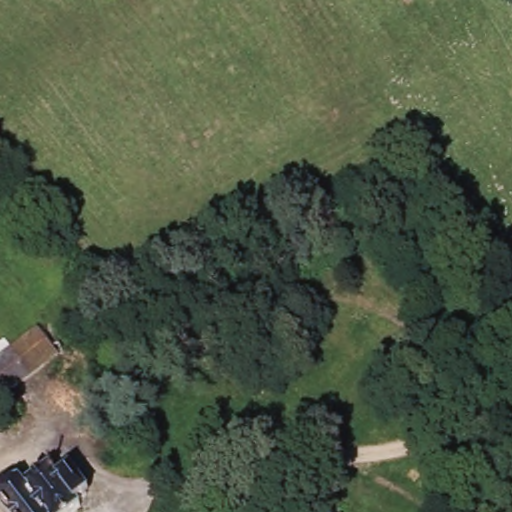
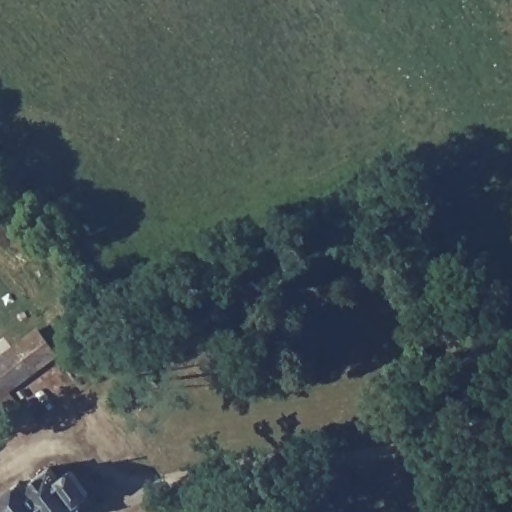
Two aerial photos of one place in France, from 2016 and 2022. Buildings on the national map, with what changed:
unchanged [(55,355),(19,385),(1,362),(37,334),(55,355)]
unchanged [(19,385),(0,399),(0,363),(1,362),(19,385)]
unchanged [(5,418),(15,430),(9,436),(0,426),(0,423),(5,418)]
unchanged [(54,463),(62,472),(70,465),(91,491),(76,503),(80,509),(76,512),(9,512),(0,499),(0,492),(22,475),(30,482),(54,463)]

